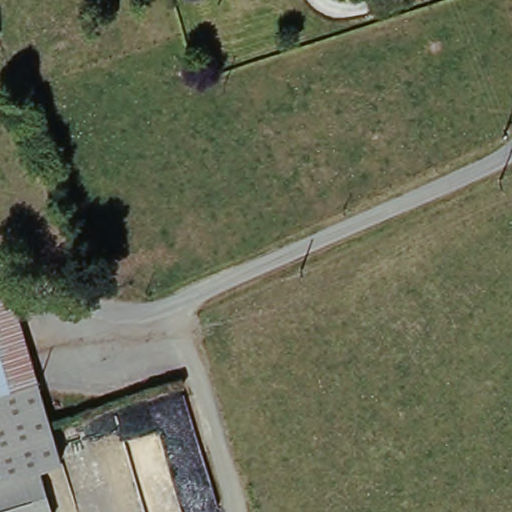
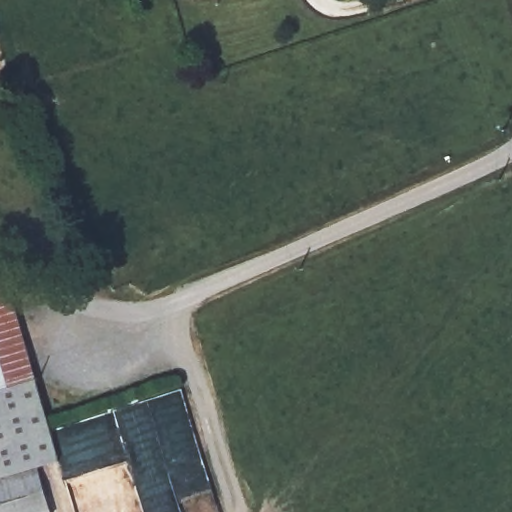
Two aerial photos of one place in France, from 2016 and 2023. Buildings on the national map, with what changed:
unchanged [(36,381),(0,392),(0,299),(10,297),(36,381)]
unchanged [(58,462),(40,468),(0,480),(0,392),(36,381),(58,462)]
unchanged [(53,512),(0,512),(0,480),(40,468),(53,512)]

